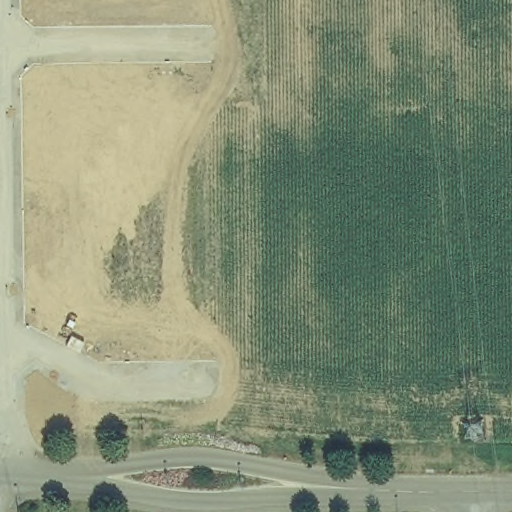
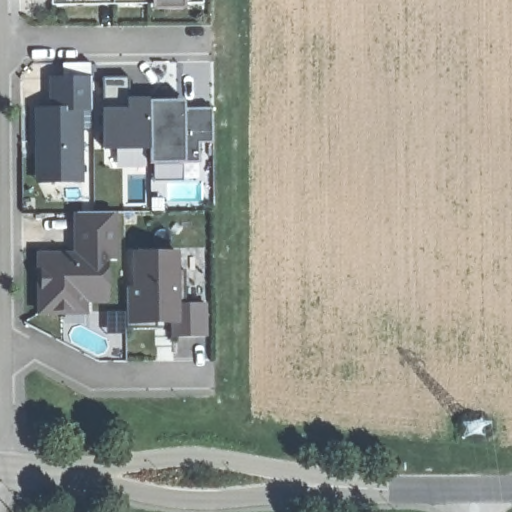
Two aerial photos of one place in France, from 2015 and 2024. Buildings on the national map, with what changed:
new [(170,5),(170,0),(203,0),(203,4),(170,5)]
new [(90,110),(82,111),(81,183),(33,184),(33,107),(45,107),(46,77),(90,75),(90,110)]
new [(214,141),(198,142),(198,161),(183,160),(148,161),(148,149),(104,149),(103,108),(104,78),(128,78),(127,99),(148,99),(149,102),(186,102),(186,107),(213,107),(214,141)]
new [(66,312),(42,312),(41,268),(48,268),(54,256),(78,256),(78,220),(78,214),(115,214),(115,219),(115,258),(106,258),(107,300),(85,300),(85,312),(66,312)]
new [(206,335),(169,335),(169,323),(155,321),(154,328),(126,327),(124,287),(133,288),(134,253),(178,251),(179,267),(184,267),(186,303),(207,303),(206,335)]

